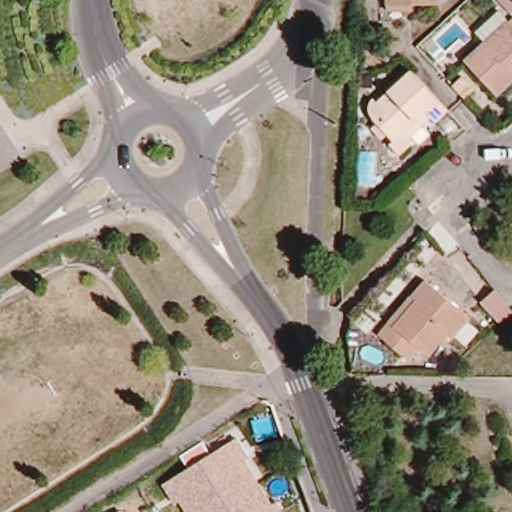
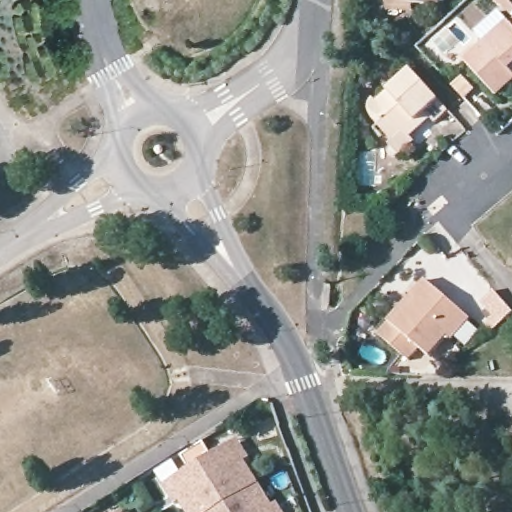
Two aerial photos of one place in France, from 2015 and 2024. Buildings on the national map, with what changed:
unchanged [(391,16),(392,5),(392,0),(452,0),(442,6),(421,6),(421,16),(391,16)]
unchanged [(505,15),(491,0),(502,0),(511,10),(505,15)]
unchanged [(509,78),(490,96),(459,63),(455,58),(469,46),(474,51),(480,45),(470,33),(493,12),(503,23),(512,32),(512,81),(509,78)]
unchanged [(408,138),(394,151),(384,140),(388,137),(372,120),(381,111),(372,100),(407,68),(443,106),(429,119),(425,114),(404,134),(408,138)]
unchanged [(426,281),(470,318),(452,339),(447,335),(429,356),(419,348),(408,360),(378,334),(389,321),(412,295),(425,280),(426,281)]
unchanged [(492,291),(511,313),(501,322),(481,301),(492,291)]
unchanged [(246,462),(273,505),(276,502),(284,512),(185,512),(179,503),(176,505),(163,485),(188,467),(181,457),(201,443),(210,454),(236,438),(251,458),(246,462)]
unchanged [(119,512),(121,511),(122,512),(119,512)]

